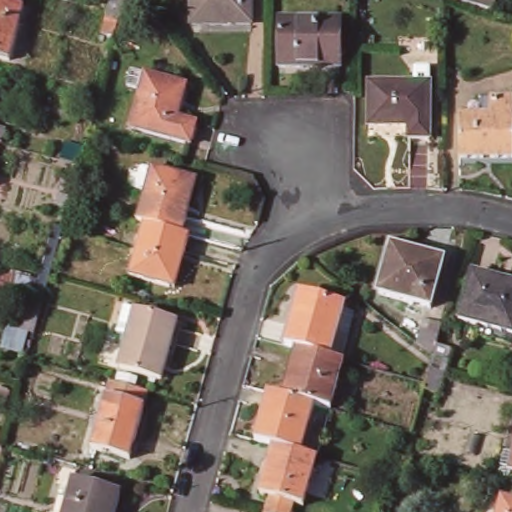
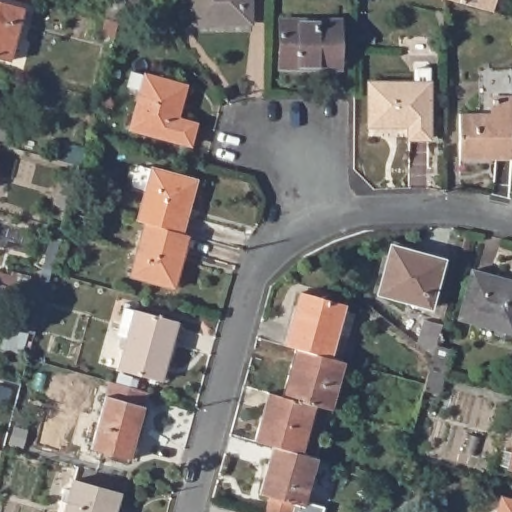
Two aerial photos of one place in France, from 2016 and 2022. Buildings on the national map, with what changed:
unchanged [(111,0),(113,0),(125,4),(119,24),(115,41),(101,38),(105,21),(111,0)]
unchanged [(245,0),(245,28),(185,28),(185,0),(245,0)]
unchanged [(499,0),(494,15),(452,3),(453,0),(499,0)]
unchanged [(6,64),(0,62),(0,7),(20,12),(6,64)]
unchanged [(277,20),(337,20),(335,68),(277,68),(277,20)]
unchanged [(428,80),(428,135),(406,134),(405,121),(366,121),(366,80),(428,80)]
unchanged [(139,81),(182,91),(173,126),(192,131),(187,150),(124,134),(139,81)]
unchanged [(457,116),(477,116),(477,98),(512,98),(512,130),(512,163),(457,162),(457,116)]
unchanged [(0,136),(0,134),(1,134),(0,136)]
unchanged [(65,145),(86,150),(81,169),(59,163),(65,145)]
unchanged [(151,170),(196,182),(183,235),(144,224),(136,222),(151,170)]
unchanged [(63,186),(75,189),(71,204),(69,211),(58,208),(63,186)]
unchanged [(144,224),(183,235),(191,237),(175,291),(129,279),(144,224)]
unchanged [(10,277),(31,283),(44,238),(60,243),(51,275),(45,299),(7,288),(10,277)]
unchanged [(388,246),(441,260),(428,310),(374,296),(388,246)]
unchanged [(469,268),(512,279),(512,331),(512,333),(456,317),(469,268)]
unchanged [(297,292),(345,305),(331,357),(298,348),(283,344),(297,292)]
unchanged [(29,302),(43,305),(34,338),(21,334),(29,302)]
unchanged [(134,311),(177,323),(162,375),(119,363),(134,311)]
unchanged [(431,358),(435,344),(450,349),(442,375),(428,372),(431,358)]
unchanged [(298,348),(331,357),(345,361),(332,409),(318,405),(285,396),(298,348)]
unchanged [(8,358),(25,362),(20,382),(2,377),(8,358)]
unchanged [(111,384),(149,394),(130,463),(91,451),(111,384)]
unchanged [(270,391),(285,396),(318,405),(305,453),(288,448),(273,444),(256,439),(270,391)]
unchanged [(258,492),(273,444),(288,448),(305,453),(319,457),(306,506),(294,503),(292,512),(265,512),(270,496),(258,492)]
unchanged [(512,445),(512,473),(505,471),(512,445)]
unchanged [(77,482),(122,494),(117,512),(68,512),(77,482)]
unchanged [(498,503),(512,506),(512,512),(495,512),(498,503)]

